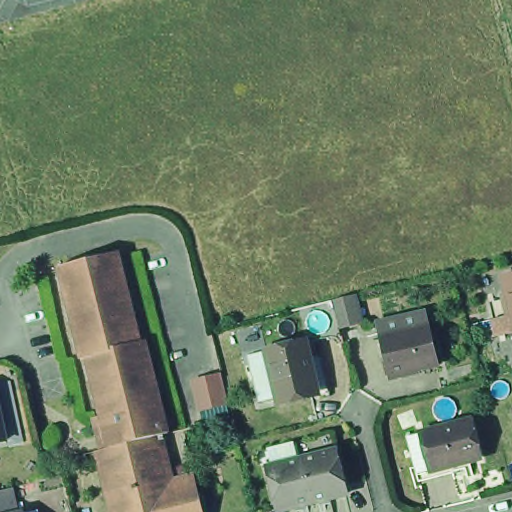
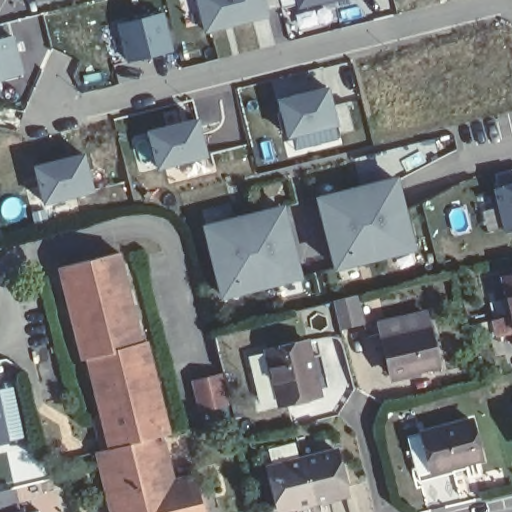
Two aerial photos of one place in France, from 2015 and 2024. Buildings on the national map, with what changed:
new [(196,0),(265,0),(269,17),(205,34),(196,0)]
new [(295,0),(336,0),(298,9),(295,0)]
new [(163,9),(173,51),(124,62),(116,23),(163,9)]
new [(14,35),(23,73),(0,79),(0,38),(14,35)]
new [(336,124),(288,136),(279,100),(326,89),(336,124)]
new [(146,130),(198,117),(208,157),(157,170),(146,130)]
new [(94,192),(43,205),(33,166),(84,153),(94,192)]
new [(397,180),(414,249),(337,268),(319,199),(397,180)]
new [(512,231),(507,232),(496,189),(512,185),(512,231)]
new [(283,208),(300,277),(224,296),(206,227),(283,208)]
unchanged [(120,252),(141,342),(146,341),(168,433),(163,435),(173,479),(194,473),(204,512),(113,512),(98,451),(103,449),(95,417),(103,415),(88,357),(83,359),(60,267),(120,252)]
unchanged [(493,307),(511,302),(506,282),(512,281),(512,337),(501,339),(497,323),(493,307)]
unchanged [(362,322),(341,327),(334,301),(356,296),(362,322)]
unchanged [(439,364),(394,376),(384,337),(388,337),(384,323),(424,313),(427,327),(430,327),(439,364)]
unchanged [(248,363),(266,358),(306,348),(310,366),(321,363),(325,381),(314,383),(318,397),(278,407),(259,411),(248,363)]
unchanged [(229,403),(201,411),(193,382),(223,375),(229,403)]
unchanged [(512,407),(512,420),(509,408),(512,407)]
unchanged [(512,420),(512,445),(507,422),(512,420)]
unchanged [(409,437),(427,433),(471,422),(482,459),(454,466),(437,470),(419,475),(409,437)]
unchanged [(1,446),(0,446),(0,439),(1,446)]
unchanged [(299,512),(269,512),(259,476),(264,475),(259,458),(286,452),(291,468),(293,467),(305,511),(299,512)]
unchanged [(326,458),(338,502),(305,511),(293,467),(326,458)]

